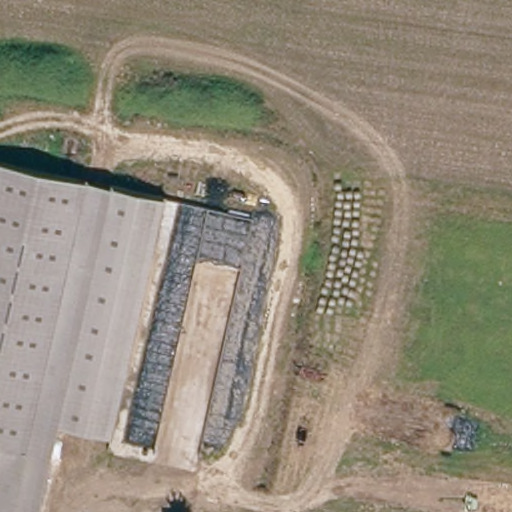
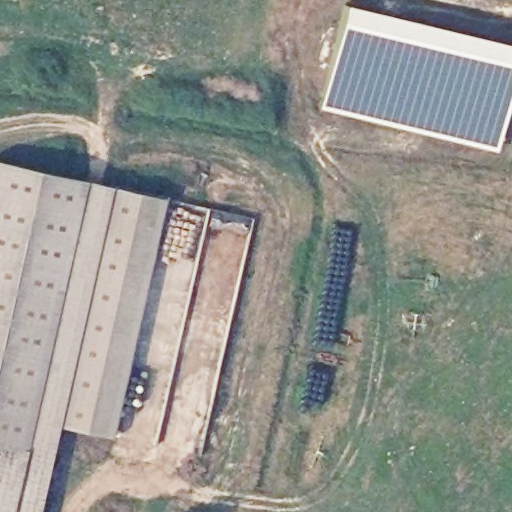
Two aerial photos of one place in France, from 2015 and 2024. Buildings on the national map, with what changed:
new [(346,2),(512,43),(512,86),(497,150),(319,108),(346,2)]
unchanged [(0,174),(108,198),(38,512),(0,512),(0,174)]
unchanged [(108,198),(161,209),(110,437),(57,428),(108,198)]

